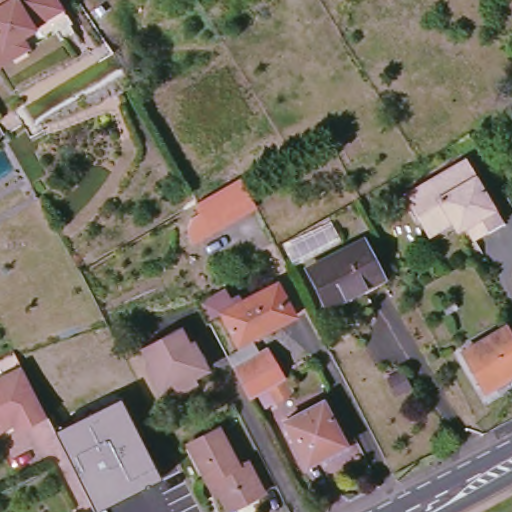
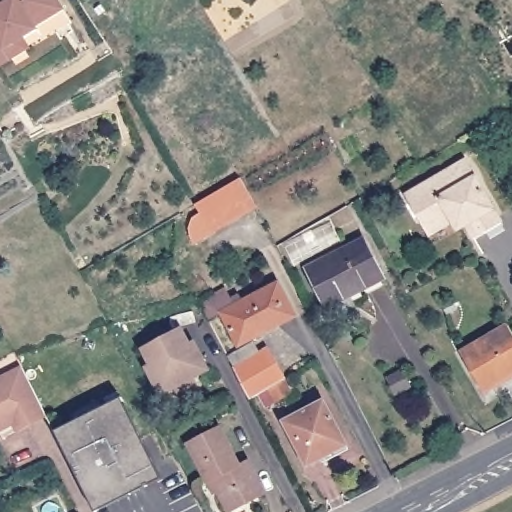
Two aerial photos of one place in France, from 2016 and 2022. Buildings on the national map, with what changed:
unchanged [(71,29),(7,66),(0,70),(0,0),(54,0),(71,29)]
unchanged [(419,220),(406,196),(427,183),(470,159),(481,177),(478,178),(500,215),(505,224),(492,231),(476,240),(467,225),(457,231),(452,223),(451,224),(440,230),(429,237),(419,220)]
unchanged [(196,197),(234,175),(251,206),(210,230),(192,199),(196,197)]
unchanged [(307,270),(365,241),(382,278),(327,307),(307,270)]
unchanged [(222,311),(277,281),(293,311),(239,341),(222,311)]
unchanged [(150,369),(154,366),(145,351),(182,331),(191,345),(195,343),(210,371),(197,378),(200,384),(181,394),(178,389),(165,397),(150,369)]
unchanged [(512,333),(512,376),(503,381),(505,385),(487,395),(465,357),(511,331),(512,333)]
unchanged [(290,387),(271,398),(263,384),(245,393),(228,362),(264,344),(281,374),(282,373),(290,387)]
unchanged [(19,434),(15,426),(0,434),(0,375),(22,364),(50,418),(19,434)]
unchanged [(384,381),(399,372),(408,388),(393,397),(384,381)]
unchanged [(281,422),(320,400),(345,444),(305,466),(281,422)]
unchanged [(96,512),(57,434),(122,401),(163,480),(102,512),(96,512)]
unchanged [(206,485),(185,446),(216,429),(226,446),(236,464),(244,460),(263,494),(230,512),(226,512),(210,483),(206,485)]

